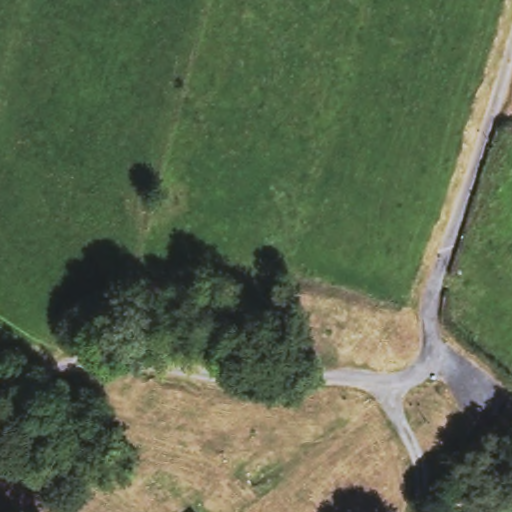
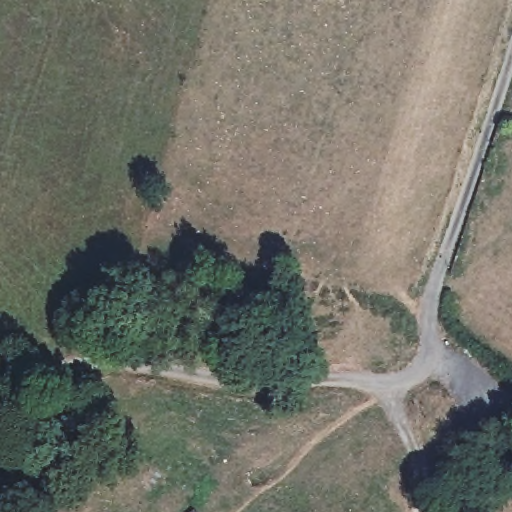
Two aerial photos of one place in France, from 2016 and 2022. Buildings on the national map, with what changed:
unchanged [(197,512),(198,511),(199,512),(197,512)]

